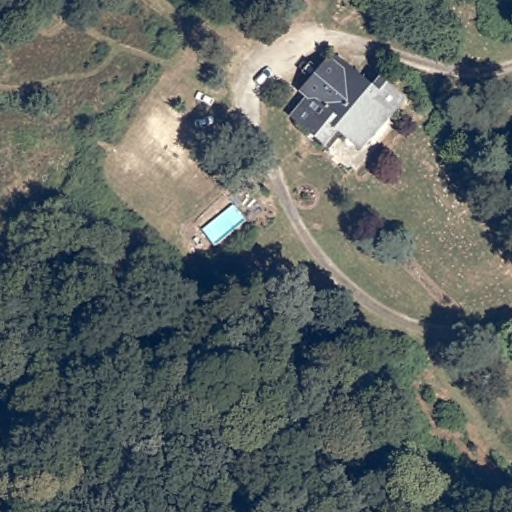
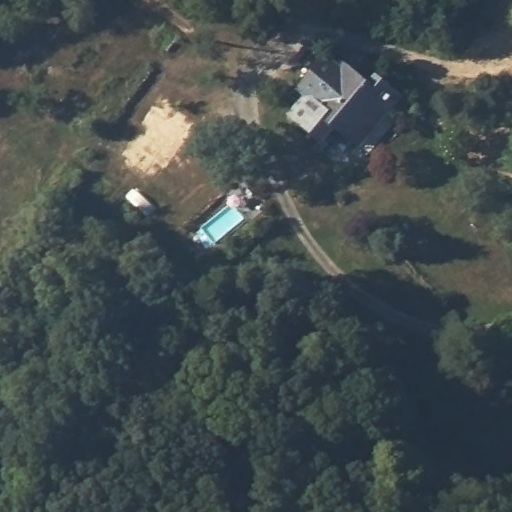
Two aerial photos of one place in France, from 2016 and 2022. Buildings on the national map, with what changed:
unchanged [(370,91),(375,82),(406,101),(394,117),(388,113),(363,150),(346,137),(333,154),(296,125),(312,106),(299,97),(328,60),(370,91)]

